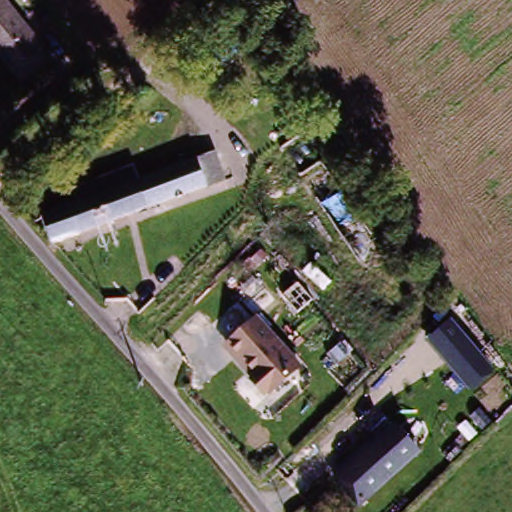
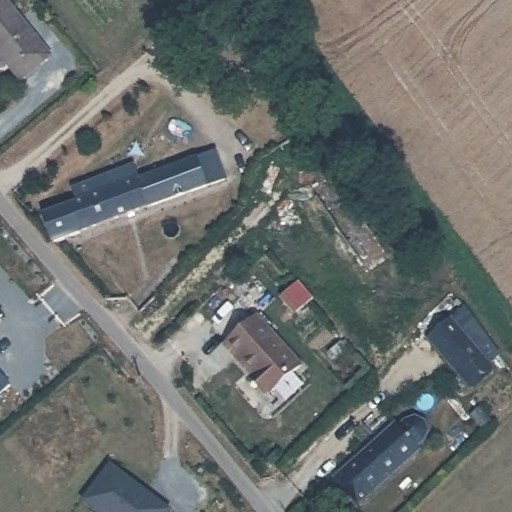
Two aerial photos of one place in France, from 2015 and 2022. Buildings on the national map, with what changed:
unchanged [(0,53),(0,0),(7,0),(50,53),(20,78),(0,53)]
unchanged [(364,273),(287,161),(312,145),(387,256),(364,273)]
unchanged [(220,183),(60,244),(50,216),(99,199),(95,190),(120,181),(117,174),(145,164),(152,178),(210,158),(220,183)]
new [(0,318),(0,310),(4,314),(0,318)]
unchanged [(494,371),(472,391),(427,341),(449,319),(494,371)]
unchanged [(270,396),(227,348),(259,322),(302,370),(270,396)]
unchanged [(345,512),(327,492),(389,436),(412,462),(358,512),(345,512)]
new [(172,510),(170,512),(98,512),(85,502),(112,467),(172,510)]

